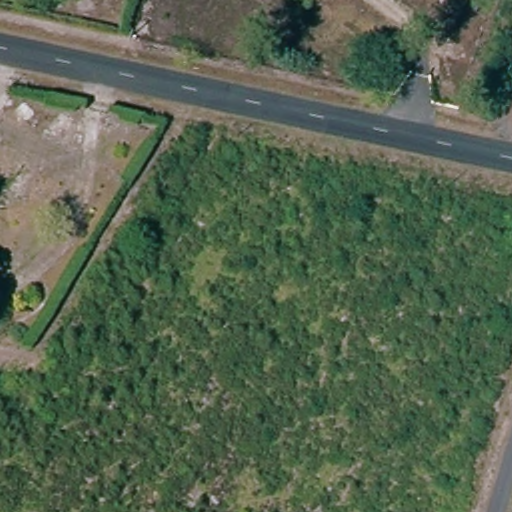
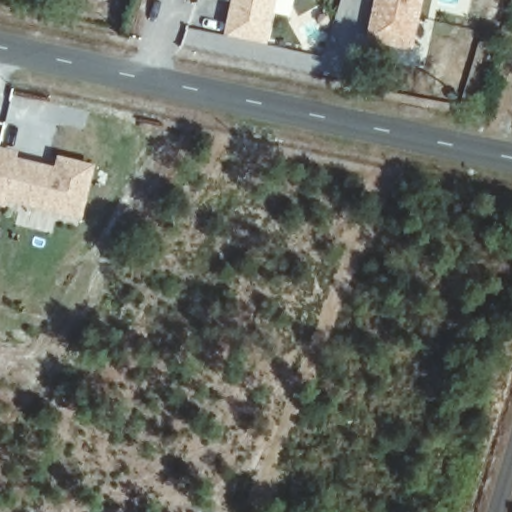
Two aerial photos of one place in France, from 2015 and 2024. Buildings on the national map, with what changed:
new [(267,44),(225,36),(232,0),(276,0),(267,44)]
new [(412,50),(365,42),(373,0),(423,0),(412,50)]
new [(4,206),(0,205),(0,145),(20,151),(17,158),(55,166),(58,155),(95,163),(82,218),(7,200),(4,206)]

